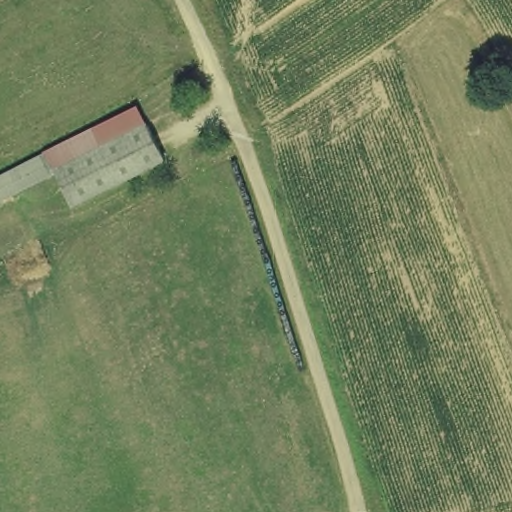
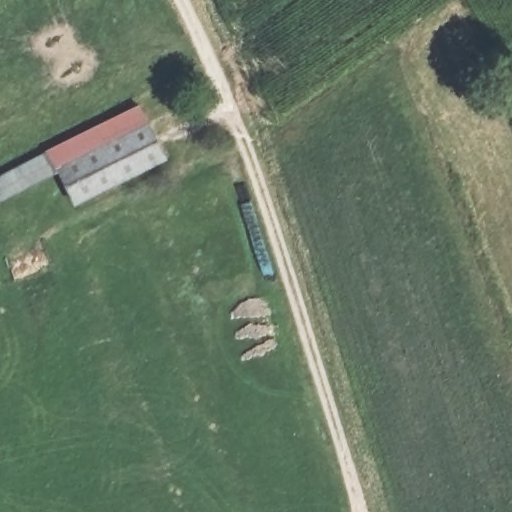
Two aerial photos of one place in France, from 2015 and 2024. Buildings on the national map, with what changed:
unchanged [(167,162),(74,207),(57,172),(0,202),(0,176),(141,106),(167,162)]

